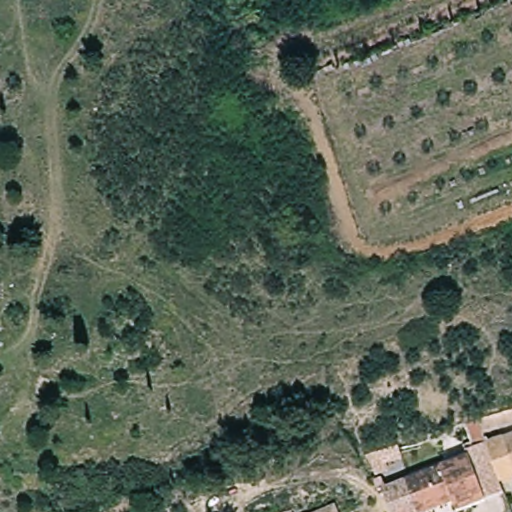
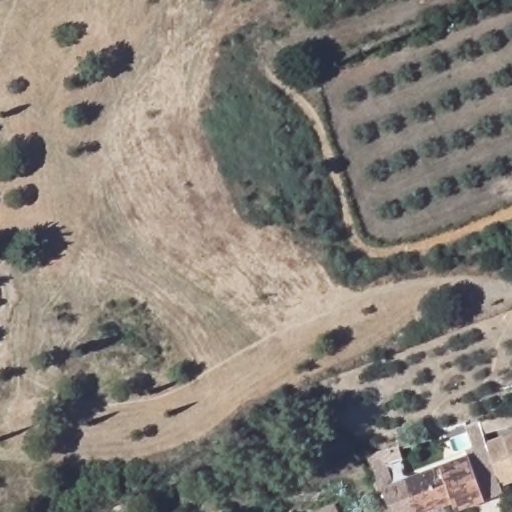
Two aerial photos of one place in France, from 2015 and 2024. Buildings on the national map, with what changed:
unchanged [(512,438),(512,480),(501,484),(489,445),(512,438)]
unchanged [(484,449),(498,493),(476,501),(462,455),(484,449)]
unchanged [(446,511),(442,500),(404,512),(387,512),(377,478),(393,473),(462,455),(476,501),(446,511)]
unchanged [(335,512),(313,512),(332,503),(335,512)]

